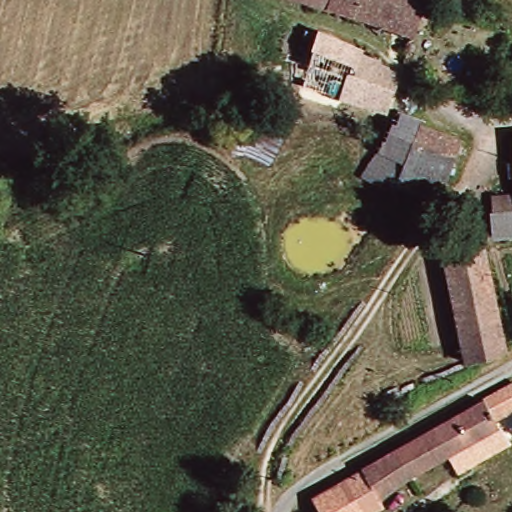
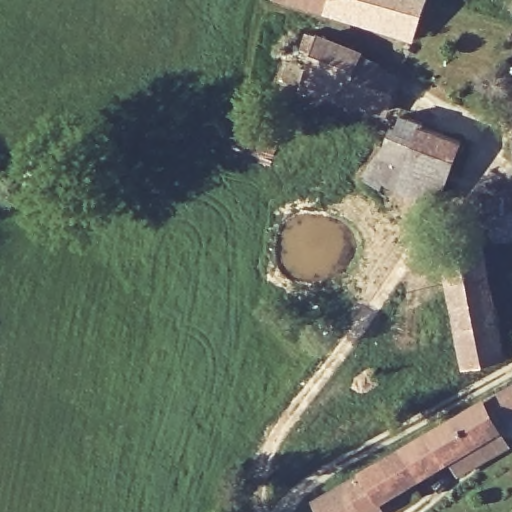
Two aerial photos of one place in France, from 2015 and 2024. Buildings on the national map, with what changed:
unchanged [(413,37),(325,9),(294,0),(426,0),(413,37)]
unchanged [(382,115),(340,104),(345,86),(305,73),(315,44),(398,72),(382,115)]
unchanged [(445,178),(395,158),(381,184),(378,188),(360,178),(401,117),(402,114),(458,139),(445,178)]
unchanged [(290,116),(289,154),(248,154),(248,119),(290,116)]
unchanged [(437,204),(381,184),(395,158),(445,178),(437,204)]
unchanged [(490,235),(489,216),(497,215),(496,196),(512,196),(512,236),(490,235)]
unchanged [(490,267),(507,344),(470,352),(451,276),(490,267)]
unchanged [(497,422),(500,433),(414,480),(377,502),(365,476),(361,469),(512,387),(512,414),(497,422)]
unchanged [(376,512),(315,512),(311,504),(365,476),(377,502),(382,509),(376,512)]

